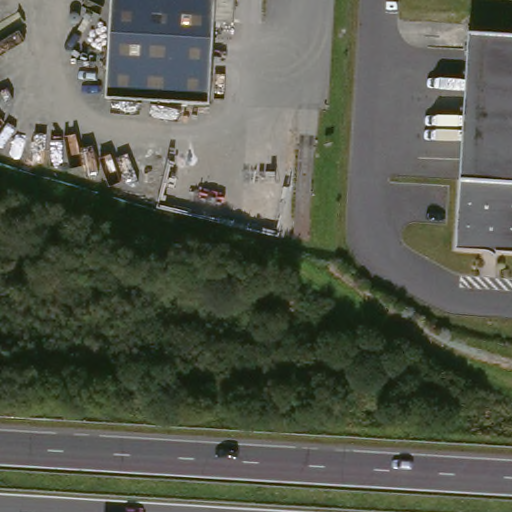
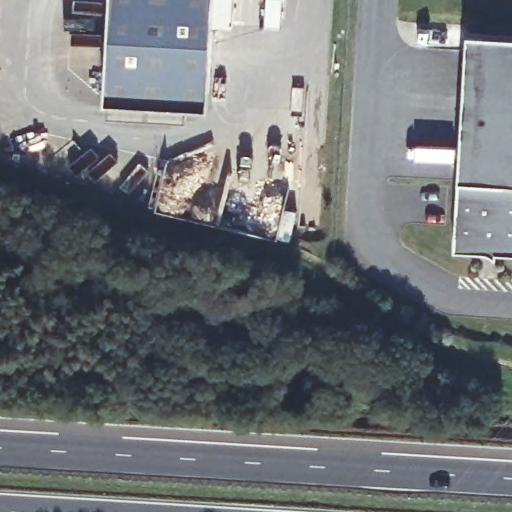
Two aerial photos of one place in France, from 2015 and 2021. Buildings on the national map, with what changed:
unchanged [(238,21),(218,21),(217,105),(113,102),(114,0),(238,0),(238,21)]
unchanged [(463,35),(512,38),(512,254),(450,248),(454,184),(463,35)]

